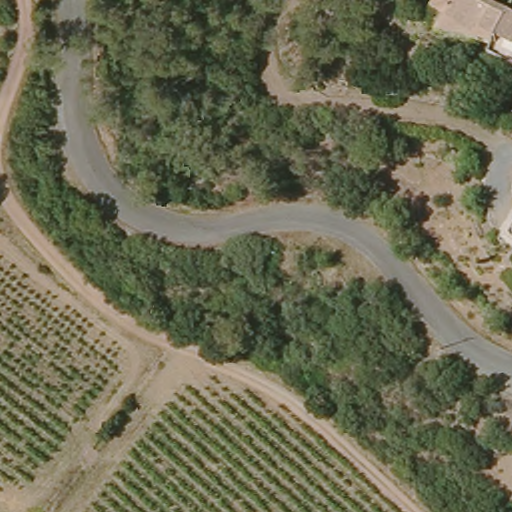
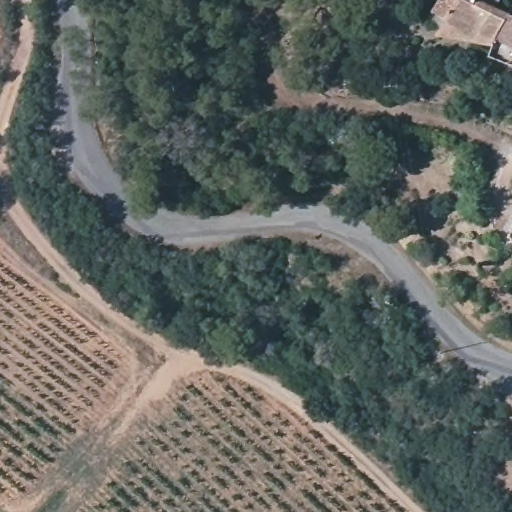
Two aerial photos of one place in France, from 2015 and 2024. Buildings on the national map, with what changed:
unchanged [(439,32),(456,0),(487,0),(506,12),(512,14),(512,61),(489,52),(492,43),(439,32)]
unchanged [(512,225),(512,233),(509,232),(512,225)]

